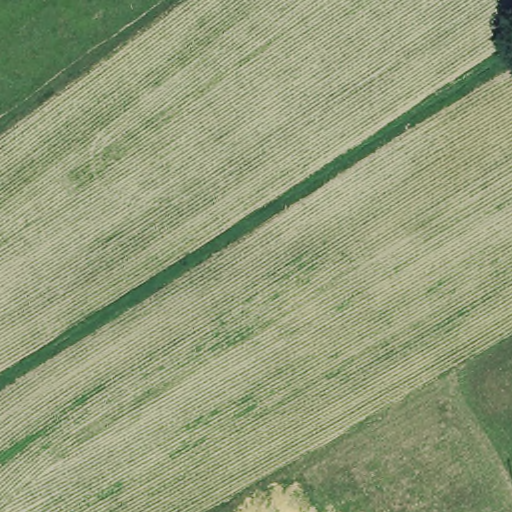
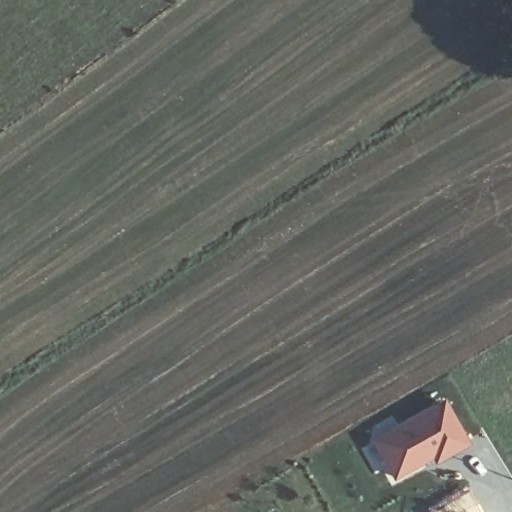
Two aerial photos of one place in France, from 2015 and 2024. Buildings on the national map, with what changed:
new [(469,446),(434,465),(432,461),(394,482),(368,440),(444,399),(469,446)]

